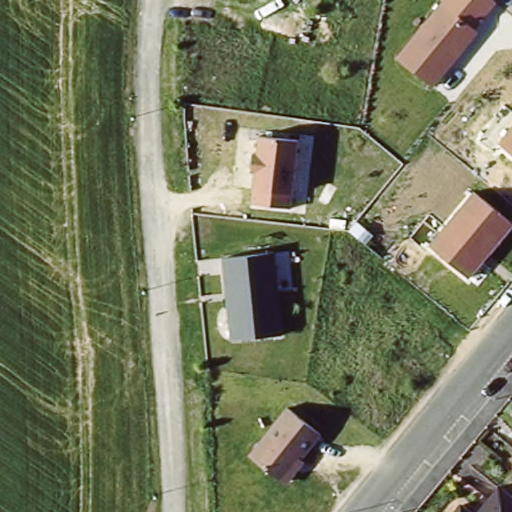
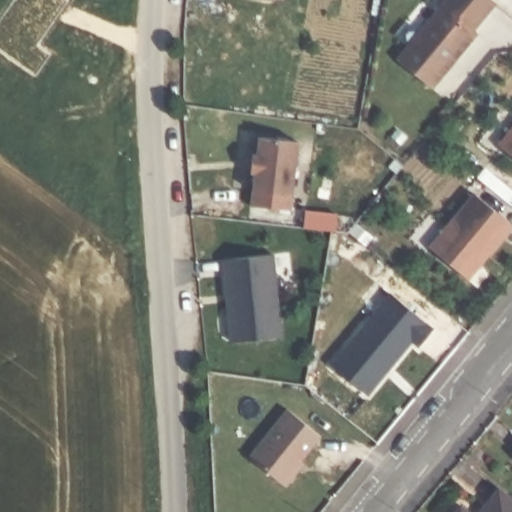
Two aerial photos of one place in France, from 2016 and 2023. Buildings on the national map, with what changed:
unchanged [(442,1),(480,31),(435,85),(396,56),(442,1)]
unchanged [(512,154),(498,142),(512,125),(512,154)]
unchanged [(297,140),(291,207),(252,204),(256,171),(251,170),(253,152),(257,153),(259,136),(297,140)]
unchanged [(512,226),(468,278),(428,245),(472,191),(512,223),(512,226)]
unchanged [(282,335),(228,340),(221,256),(275,252),(282,335)]
new [(420,348),(415,344),(370,396),(331,365),(392,292),(436,328),(420,348)]
unchanged [(300,458),(305,462),(286,485),(282,481),(248,455),(286,408),(321,434),(300,458)]
unchanged [(512,454),(512,458),(510,456),(512,454)]
unchanged [(499,490),(512,500),(512,512),(480,512),(499,490)]
unchanged [(457,505),(467,512),(451,512),(457,505)]

